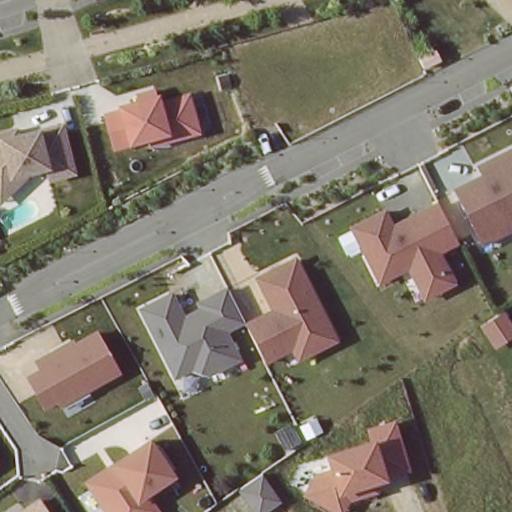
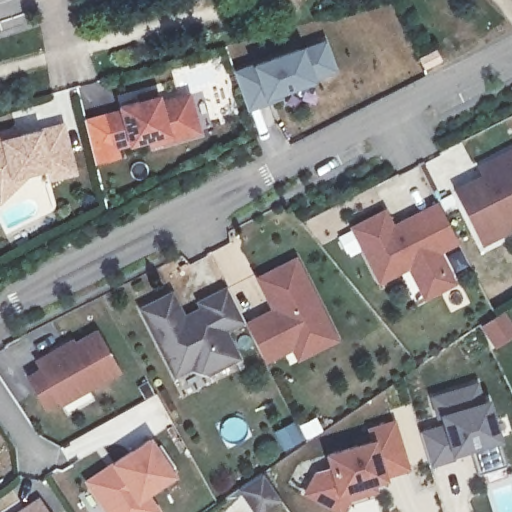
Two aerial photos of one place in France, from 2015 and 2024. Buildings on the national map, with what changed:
new [(327,41),(339,74),(318,82),(320,85),(249,111),(235,72),(327,41)]
unchanged [(202,134),(155,146),(155,138),(130,143),(132,147),(114,151),(104,113),(120,110),(117,102),(160,94),(162,100),(192,93),(202,134)]
unchanged [(63,119),(78,174),(50,181),(49,171),(38,172),(0,204),(0,136),(38,127),(63,119)]
unchanged [(512,220),(512,232),(483,246),(452,188),(479,175),(473,165),(512,145),(512,220)]
unchanged [(395,222),(437,202),(457,245),(440,251),(457,287),(425,301),(410,270),(378,284),(350,225),(387,206),(395,222)]
unchanged [(338,340),(297,360),(292,350),(264,363),(245,322),(270,309),(255,276),(296,256),(338,340)]
unchanged [(172,290),(185,314),(198,307),(195,302),(225,287),(243,323),(227,331),(240,359),(210,375),(193,370),(174,378),(137,305),(172,290)]
new [(505,313),(512,326),(512,338),(494,350),(481,327),(505,313)]
unchanged [(121,374),(64,407),(57,403),(45,411),(25,376),(38,367),(33,357),(72,337),(75,342),(97,329),(121,374)]
new [(443,426),(441,417),(437,418),(432,397),(475,383),(481,402),(485,400),(497,437),(499,437),(507,467),(476,476),(469,453),(453,457),(427,465),(418,433),(443,426)]
unchanged [(363,428),(393,421),(408,479),(387,485),(388,492),(350,501),(345,512),(332,512),(302,497),(313,472),(328,467),(324,452),(366,440),(363,428)]
unchanged [(107,512),(84,480),(112,462),(148,437),(177,476),(150,492),(162,511),(160,512),(107,512)]
unchanged [(265,512),(253,512),(237,487),(263,472),(282,502),(265,512)]
unchanged [(49,512),(15,512),(39,497),(49,512)]

